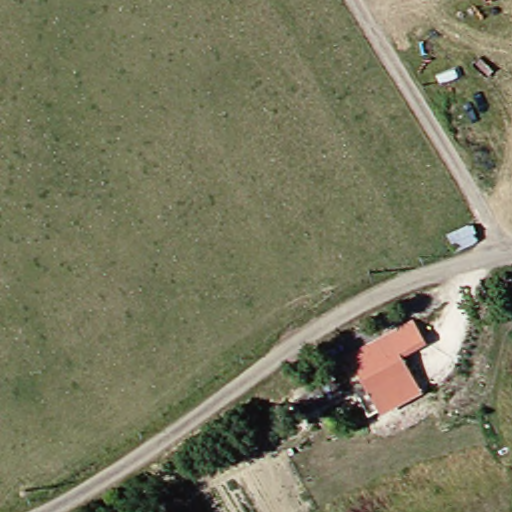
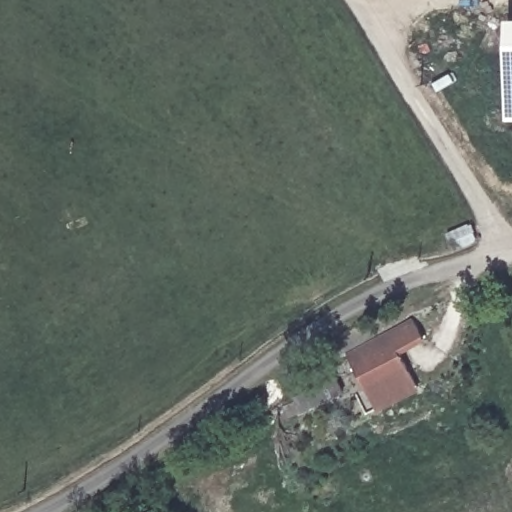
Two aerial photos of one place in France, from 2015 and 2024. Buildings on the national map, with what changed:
new [(504,21),(512,21),(512,123),(503,122),(504,21)]
unchanged [(380,413),(347,353),(415,316),(432,343),(406,360),(422,390),(380,413)]
unchanged [(331,415),(284,432),(282,426),(273,430),(267,415),(323,395),(331,415)]

